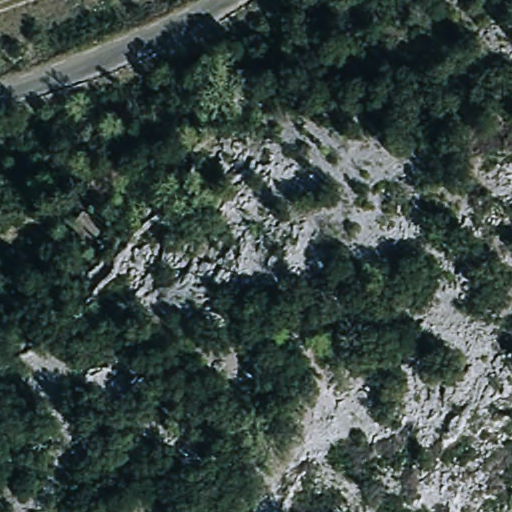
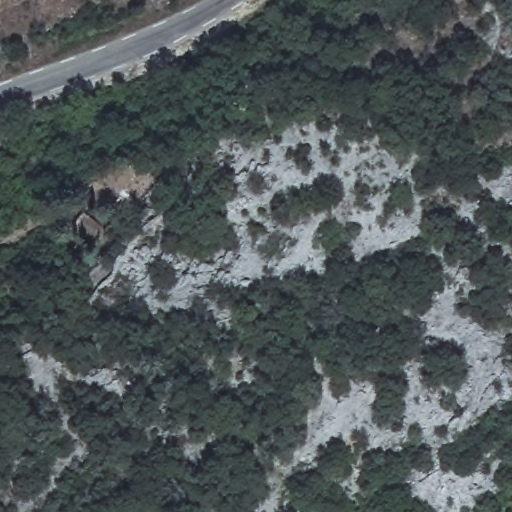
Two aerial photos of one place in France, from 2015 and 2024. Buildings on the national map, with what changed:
unchanged [(108,231),(90,249),(70,230),(85,212),(108,231)]

